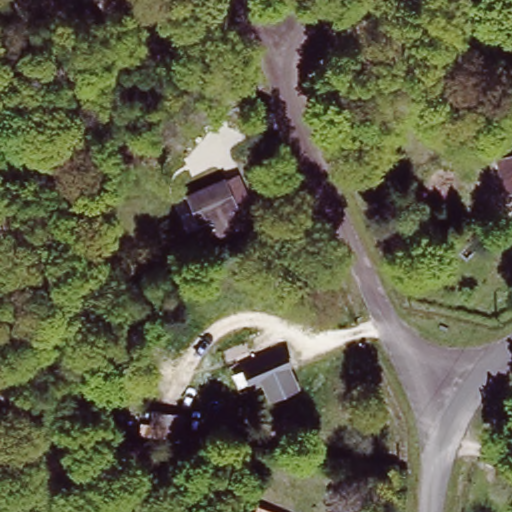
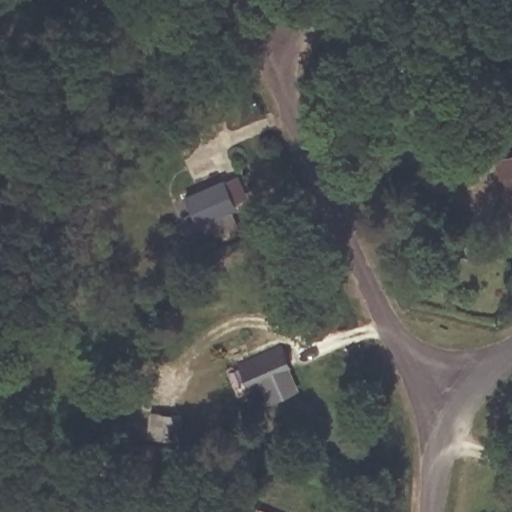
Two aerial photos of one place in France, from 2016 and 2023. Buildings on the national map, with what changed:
unchanged [(505,162),(512,159),(512,177),(505,162)]
unchanged [(224,173),(236,196),(231,197),(238,213),(217,223),(210,209),(197,215),(186,192),(224,173)]
unchanged [(239,375),(246,372),(278,357),(285,355),(297,380),(290,383),(297,400),(273,410),(267,393),(258,397),(250,401),(239,375)]
unchanged [(149,416),(177,418),(174,443),(146,439),(149,416)]
unchanged [(280,512),(259,512),(262,505),(280,512)]

